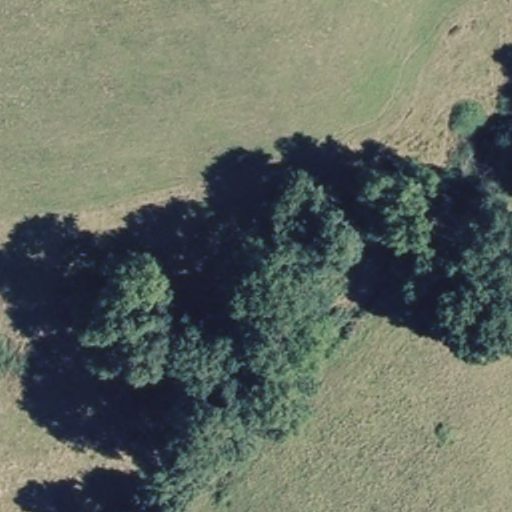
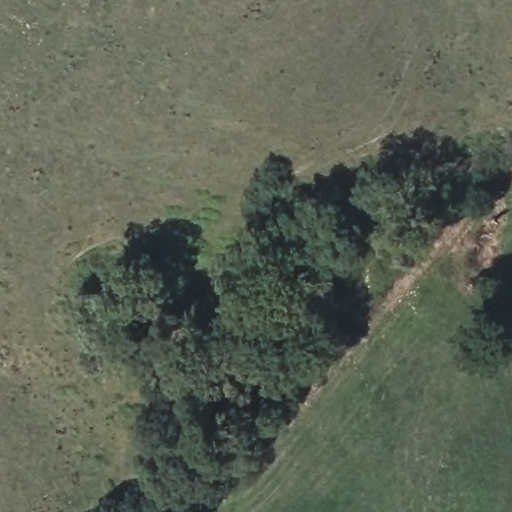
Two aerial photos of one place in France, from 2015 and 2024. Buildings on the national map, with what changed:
[]

